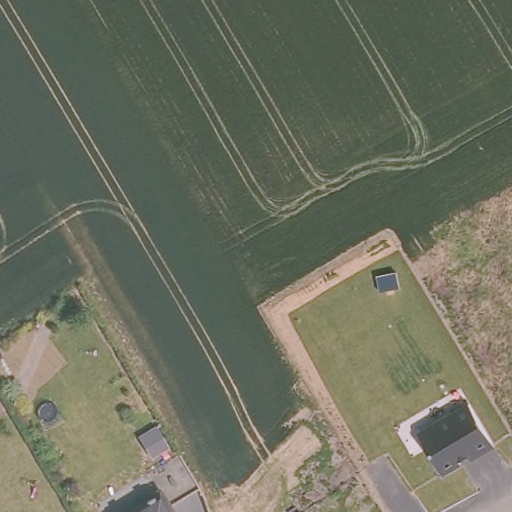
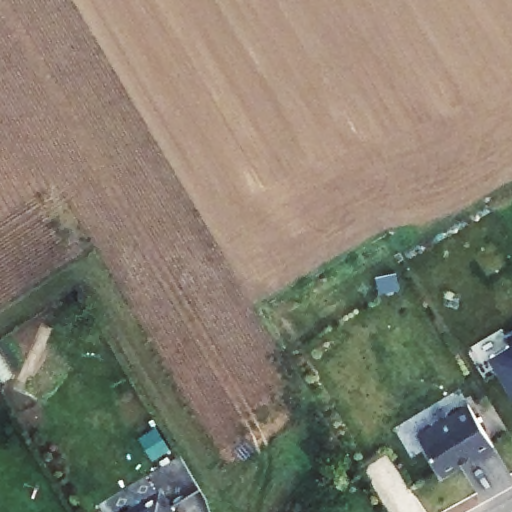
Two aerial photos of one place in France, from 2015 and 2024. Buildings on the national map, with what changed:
new [(488,355),(512,341),(512,394),(488,355)]
unchanged [(466,399),(495,446),(473,459),(470,457),(443,474),(415,429),(466,399)]
unchanged [(172,512),(128,512),(160,491),(172,512)]

